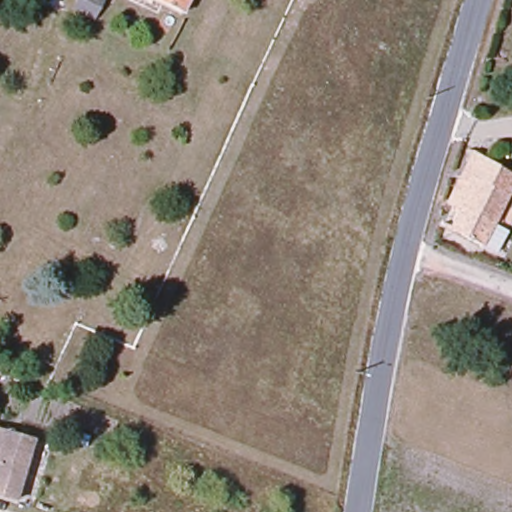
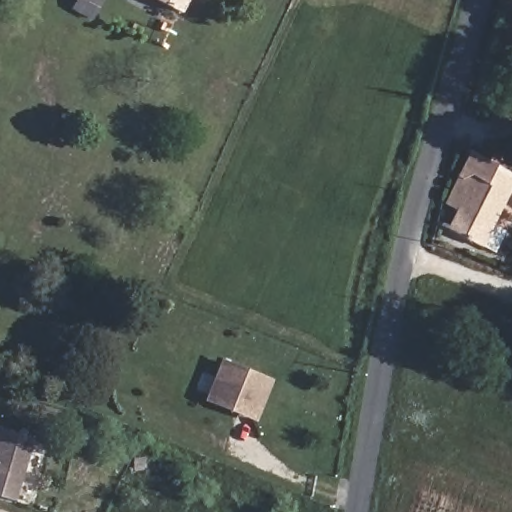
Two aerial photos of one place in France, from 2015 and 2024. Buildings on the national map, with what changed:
unchanged [(82,0),(92,0),(100,4),(91,20),(76,11),(82,0)]
unchanged [(184,17),(151,0),(192,0),(184,17)]
unchanged [(452,153),(512,183),(512,187),(480,253),(435,232),(455,186),(445,181),(450,160),(452,153)]
new [(258,422),(207,401),(224,359),(274,380),(258,422)]
unchanged [(31,445),(15,510),(0,506),(0,436),(31,445)]

